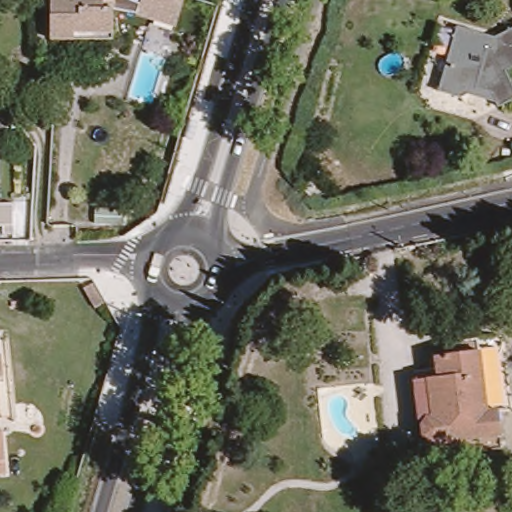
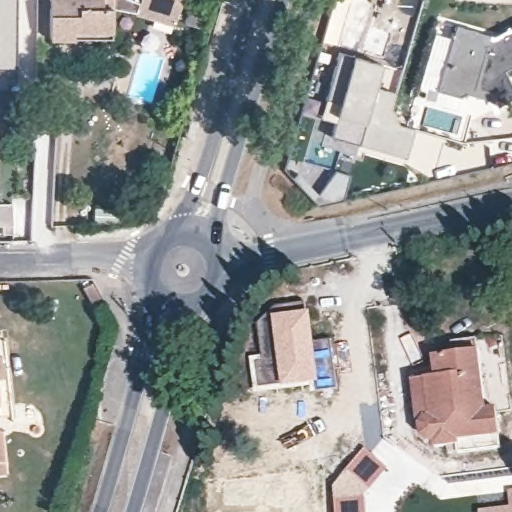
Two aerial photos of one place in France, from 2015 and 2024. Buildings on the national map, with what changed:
new [(0,70),(0,0),(18,0),(17,70),(0,70)]
unchanged [(54,38),(54,0),(116,0),(116,31),(116,40),(76,39),(54,38)]
unchanged [(133,17),(137,0),(178,0),(172,27),(133,17)]
unchanged [(442,91),(460,26),(485,32),(499,36),(512,30),(512,69),(509,70),(512,77),(512,102),(503,107),(466,97),(442,91)]
new [(341,53),(384,65),(378,87),(398,93),(393,113),(402,125),(417,129),(410,158),(334,138),(342,105),(328,101),(341,53)]
unchanged [(13,232),(5,232),(5,225),(0,225),(0,205),(14,205),(13,232)]
new [(309,310),(319,382),(279,385),(270,315),(309,310)]
new [(261,354),(256,321),(270,315),(279,385),(255,387),(250,356),(261,354)]
unchanged [(435,358),(454,355),(452,342),(476,339),(477,352),(485,410),(495,409),(498,434),(500,447),(465,452),(465,443),(433,447),(433,441),(427,441),(421,435),(414,380),(437,377),(436,369),(435,358)]
unchanged [(0,448),(0,427),(1,427),(2,448),(0,448)]
new [(366,512),(335,512),(334,493),(336,483),(365,449),(388,469),(367,493),(366,512)]
new [(480,510),(510,506),(507,490),(512,489),(512,512),(480,512),(480,510)]

